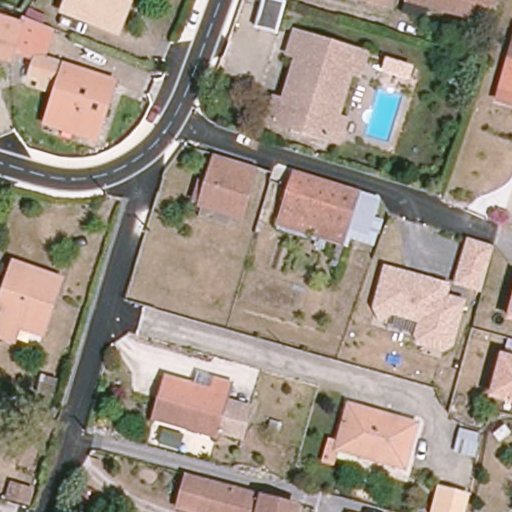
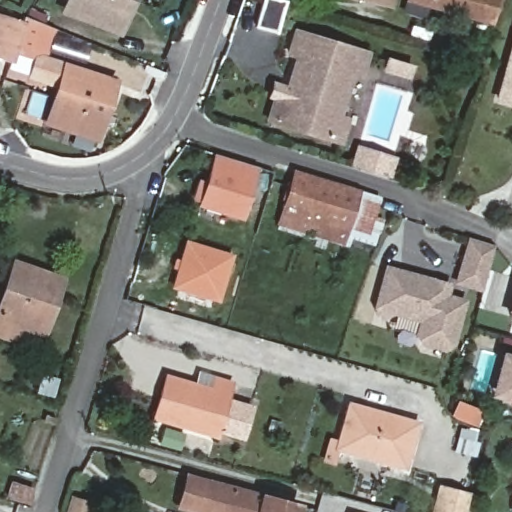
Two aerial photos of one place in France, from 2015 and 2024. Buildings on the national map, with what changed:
unchanged [(124,13),(129,15),(123,30),(71,10),(76,0),(129,0),(124,13)]
unchanged [(287,1),(277,32),(257,26),(264,0),(284,0),(287,1)]
unchanged [(386,3),(371,0),(387,0),(386,3)]
unchanged [(491,22),(410,0),(498,0),(491,22)]
unchanged [(115,81),(97,139),(47,123),(57,93),(37,86),(40,79),(31,77),(36,61),(13,53),(11,59),(0,56),(0,17),(22,24),(25,17),(45,25),(54,28),(44,58),(115,81)]
unchanged [(363,49),(356,71),(347,68),(334,112),(343,115),(336,137),(263,115),(270,92),(280,95),(293,51),(284,49),(291,26),(363,49)]
unchanged [(494,99),(512,34),(512,104),(494,99)]
unchanged [(410,76),(386,68),(388,60),(412,67),(410,76)]
new [(356,147),(392,158),(386,176),(350,165),(356,147)]
unchanged [(241,218),(201,205),(219,149),(259,161),(241,218)]
unchanged [(353,188),(338,237),(323,233),(320,244),(311,241),(313,233),(275,221),(290,168),(353,188)]
unchanged [(372,212),(380,215),(375,229),(374,228),(370,240),(347,233),(345,240),(338,237),(353,188),(376,195),(372,212)]
unchanged [(482,293),(452,284),(465,237),(496,245),(482,293)]
demolished [(167,242),(159,272),(145,269),(153,238),(167,242)]
new [(170,288),(185,239),(234,253),(219,302),(170,288)]
unchanged [(56,292),(49,290),(37,323),(21,318),(15,335),(0,330),(0,301),(14,260),(61,277),(56,292)]
unchanged [(445,294),(465,299),(454,348),(442,352),(419,345),(413,334),(416,320),(392,313),(380,322),(372,305),(383,264),(448,282),(445,294)]
unchanged [(506,318),(512,296),(512,320),(506,318)]
unchanged [(488,395),(500,351),(512,355),(512,402),(488,395)]
unchanged [(227,383),(224,394),(247,401),(240,430),(215,423),(211,436),(150,418),(162,377),(208,390),(211,379),(227,383)]
unchanged [(412,424),(400,467),(333,448),(330,461),(321,459),(326,441),(335,443),(345,405),(412,424)]
unchanged [(478,432),(476,441),(480,442),(476,457),(457,452),(461,428),(478,432)]
unchanged [(293,512),(234,512),(177,496),(183,476),(295,506),(293,512)]
unchanged [(467,512),(434,512),(440,488),(471,496),(467,512)]

